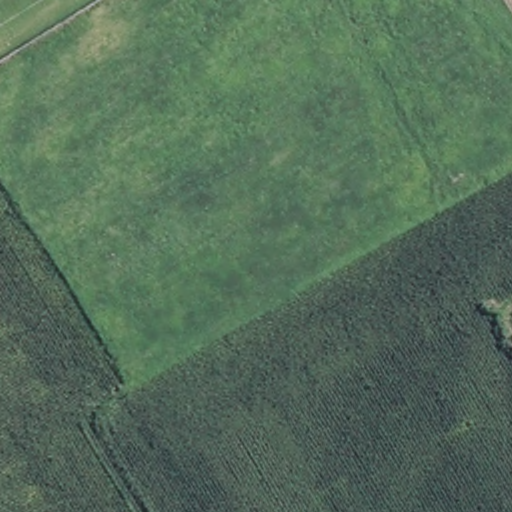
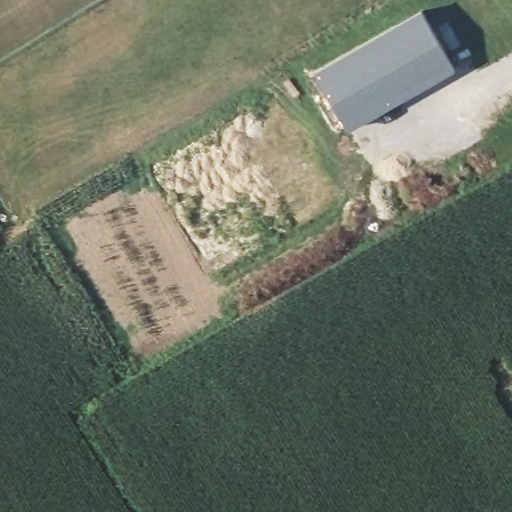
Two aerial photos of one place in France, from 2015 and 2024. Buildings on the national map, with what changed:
new [(424,9),(457,67),(350,129),(317,71),(424,9)]

